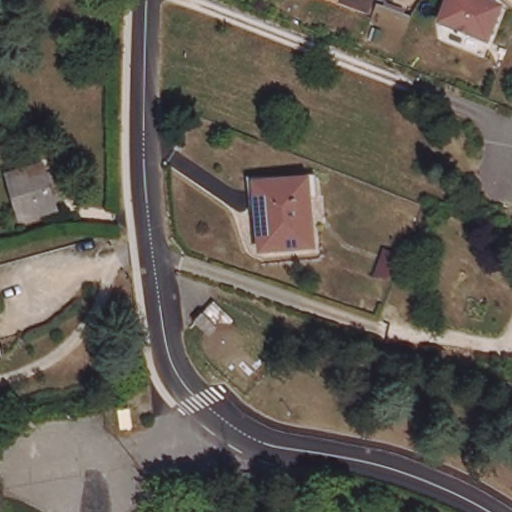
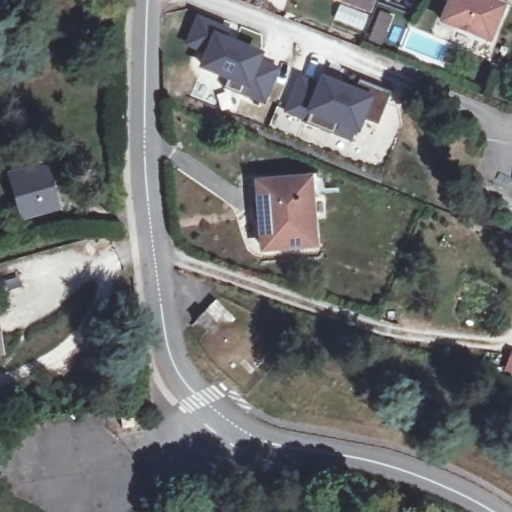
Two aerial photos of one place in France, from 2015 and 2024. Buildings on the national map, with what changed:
unchanged [(373,10),(353,2),(354,0),(377,0),(373,10)]
unchanged [(489,44),(432,24),(441,0),(504,0),(489,44)]
new [(231,29),(227,38),(264,52),(262,61),(280,68),(265,106),(225,90),(226,81),(197,70),(203,56),(184,47),(197,16),(231,29)]
new [(298,76),(315,83),(319,75),(355,90),(359,81),(390,93),(378,126),(365,121),(359,136),(337,127),(334,136),(305,125),(306,123),(284,114),(298,76)]
unchanged [(45,169),(56,206),(28,215),(17,178),(45,169)]
unchanged [(262,230),(258,182),(318,177),(320,194),(309,195),(313,244),(277,247),(264,248),(262,230)]
unchanged [(0,343),(0,337),(1,343),(0,343)]

